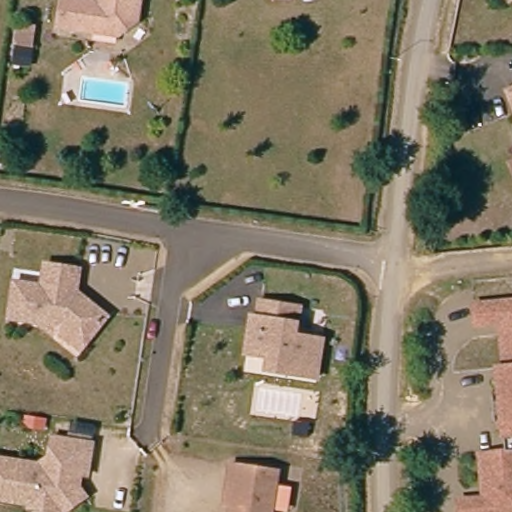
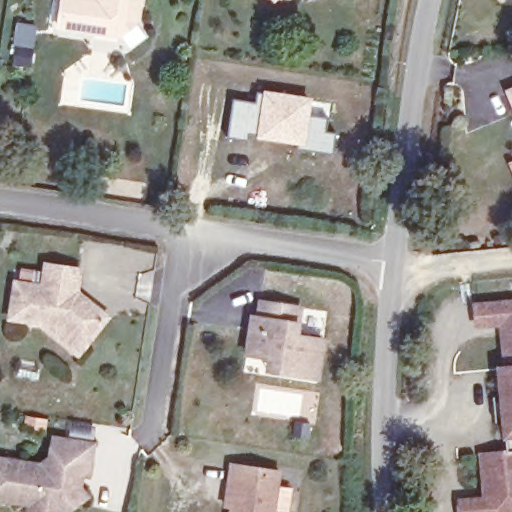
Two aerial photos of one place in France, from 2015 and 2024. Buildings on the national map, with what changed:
unchanged [(63,26),(66,0),(101,0),(144,0),(142,21),(122,34),(98,31),(63,26)]
unchanged [(276,0),(280,0),(278,2),(276,0)]
unchanged [(39,25),(36,46),(21,44),(24,24),(39,25)]
unchanged [(512,85),(512,102),(507,87),(512,85)]
new [(325,130),(335,132),(332,154),(303,149),(254,137),(259,103),(262,89),(313,96),(310,115),(326,118),(325,130)]
new [(233,99),(259,103),(254,137),(249,136),(248,140),(227,136),(233,99)]
unchanged [(62,327),(10,318),(16,282),(43,287),(47,265),(81,270),(78,292),(89,302),(109,317),(87,346),(80,354),(56,335),(62,327)]
unchanged [(273,362),(274,355),(252,352),(256,325),(257,315),(263,316),(266,300),(305,305),(301,333),(328,337),(323,376),(295,371),(273,369),(273,362)]
unchanged [(503,332),(502,321),(477,325),(475,305),(512,301),(512,366),(507,366),(503,332)]
unchanged [(500,378),(499,367),(504,366),(507,366),(512,366),(512,450),(507,450),(500,378)]
unchanged [(0,499),(0,459),(42,465),(51,458),(54,437),(94,443),(89,475),(82,473),(80,486),(88,496),(66,512),(58,512),(31,508),(32,504),(0,499)]
unchanged [(507,450),(512,450),(512,512),(462,512),(461,500),(487,497),(486,486),(482,453),(507,450)]
unchanged [(236,512),(237,505),(231,505),(235,479),(237,462),(286,470),(279,512),(236,512)]

